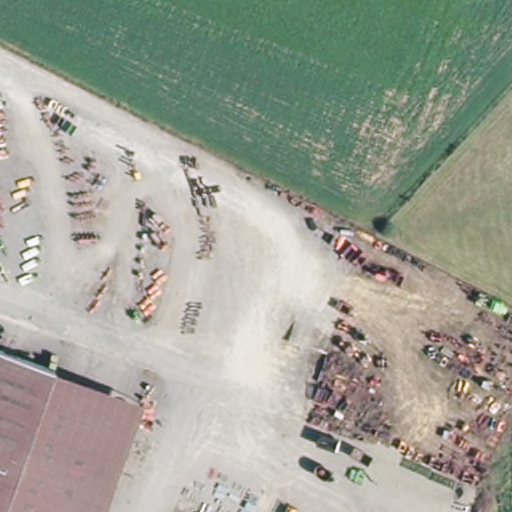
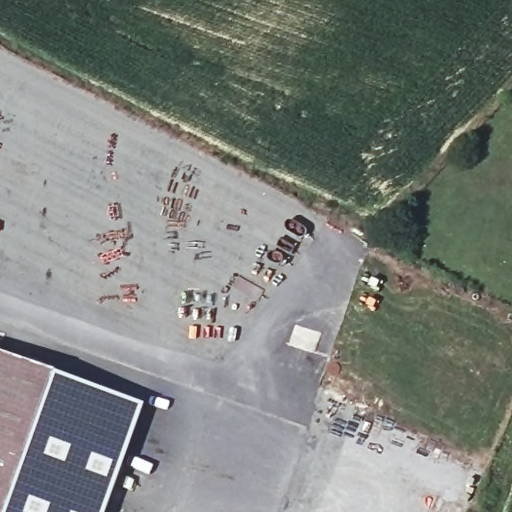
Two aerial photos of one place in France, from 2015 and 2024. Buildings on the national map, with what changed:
unchanged [(55,375),(5,512),(0,512),(0,354),(55,375)]
unchanged [(142,406),(103,512),(5,512),(55,375),(142,406)]

